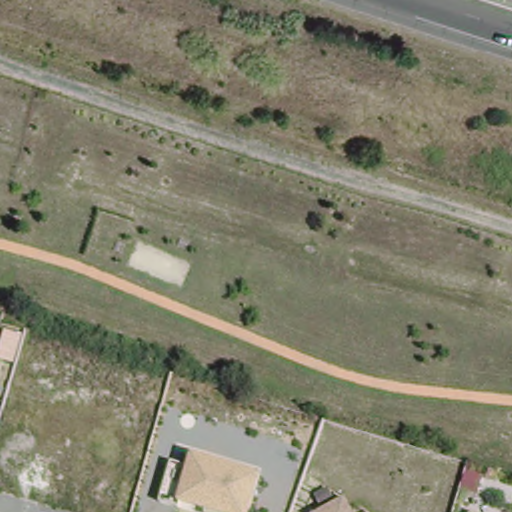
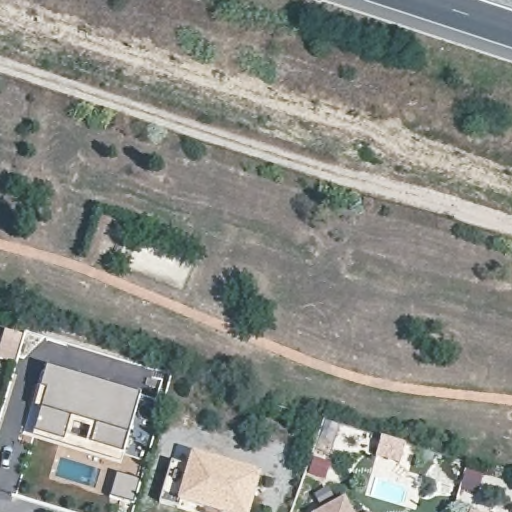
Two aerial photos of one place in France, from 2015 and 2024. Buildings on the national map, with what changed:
new [(45,391),(39,389),(46,366),(141,395),(123,454),(90,445),(95,426),(70,418),(63,442),(33,433),(45,391)]
new [(33,433),(63,442),(70,418),(95,426),(90,445),(123,454),(120,463),(32,437),(33,433)]
unchanged [(191,466),(193,455),(262,472),(253,512),(220,512),(184,502),(167,495),(175,462),(191,466)]
new [(117,472),(141,480),(134,504),(110,496),(117,472)]
unchanged [(358,512),(322,512),(349,495),(358,512)]

